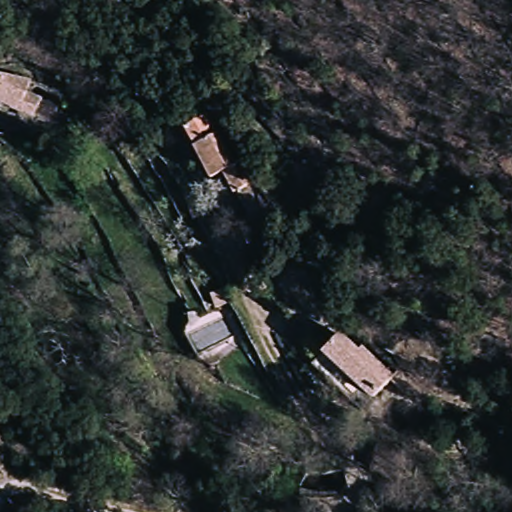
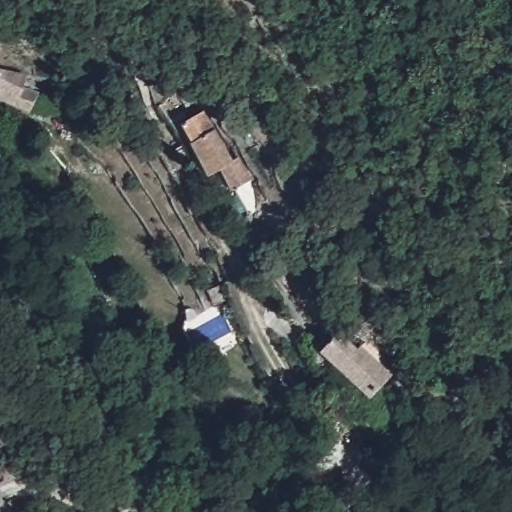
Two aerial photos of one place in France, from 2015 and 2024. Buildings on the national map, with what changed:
unchanged [(0,69),(22,73),(20,84),(39,88),(38,100),(18,96),(0,93),(0,69)]
unchanged [(244,189),(228,167),(217,175),(182,127),(205,111),(214,117),(242,158),(252,151),(265,173),(244,189)]
unchanged [(353,326),(403,369),(377,402),(325,359),(353,326)]

